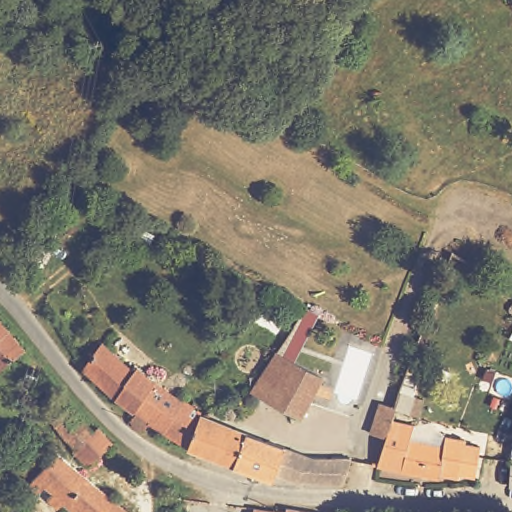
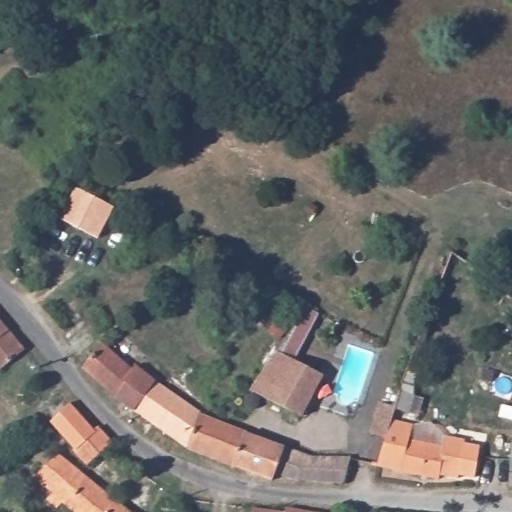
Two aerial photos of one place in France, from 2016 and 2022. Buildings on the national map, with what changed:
new [(76,187),(114,207),(99,240),(59,220),(76,187)]
unchanged [(302,419),(252,394),(277,355),(307,309),(323,317),(294,363),(324,377),(302,419)]
unchanged [(0,318),(27,351),(0,372),(0,318)]
unchanged [(138,409),(105,385),(87,366),(107,340),(139,367),(143,362),(163,377),(138,409)]
unchanged [(139,423),(134,417),(138,409),(159,382),(185,401),(184,402),(164,433),(151,425),(157,422),(146,427),(139,423)]
unchanged [(163,434),(184,402),(204,417),(188,452),(163,434)]
unchanged [(412,441),(446,448),(448,438),(468,442),(467,446),(483,450),(476,480),(461,476),(459,481),(443,477),(442,481),(379,466),(387,440),(388,439),(371,435),(381,402),(397,406),(393,421),(414,426),(412,441)]
unchanged [(120,446),(117,449),(94,471),(79,452),(83,449),(59,421),(75,406),(99,434),(104,430),(120,446)]
unchanged [(46,448),(29,430),(26,426),(39,415),(60,437),(46,448)]
unchanged [(260,441),(305,456),(349,459),(347,479),(344,486),(303,481),(300,485),(274,480),(271,485),(188,452),(204,417),(260,441)]
unchanged [(70,506),(65,512),(63,512),(52,503),(58,494),(51,489),(47,493),(41,493),(39,490),(38,486),(39,481),(63,454),(131,512),(79,512),(70,506)]
unchanged [(512,460),(512,487),(509,487),(512,460)]
unchanged [(244,507),(278,511),(279,506),(324,512),(243,512),(244,507)]

